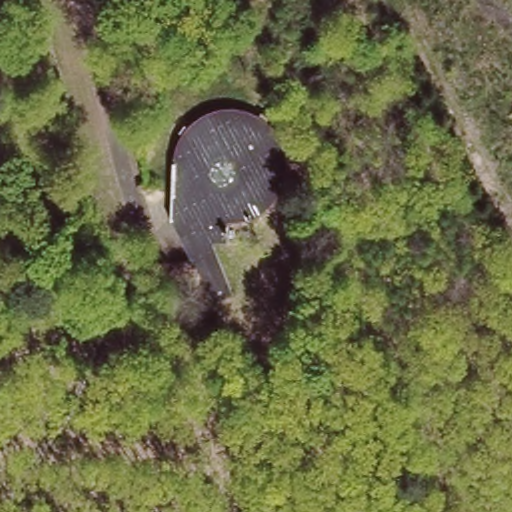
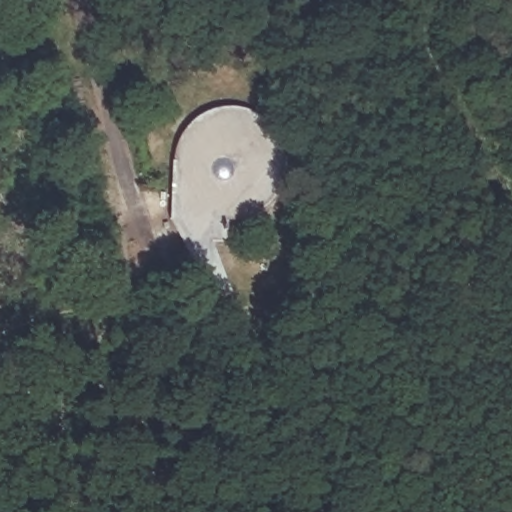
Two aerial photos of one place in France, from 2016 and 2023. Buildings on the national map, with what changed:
unchanged [(196,226),(180,196),(173,181),(170,157),(175,139),(186,122),(201,110),(216,104),(235,102),(252,106),(268,116),(282,133),(289,151),(289,177),(282,191),(272,204),(257,215),(227,221),(232,238),(220,241),(212,218),(196,226)]
unchanged [(171,214),(180,196),(196,226),(212,218),(220,241),(240,289),(215,301),(171,214)]

